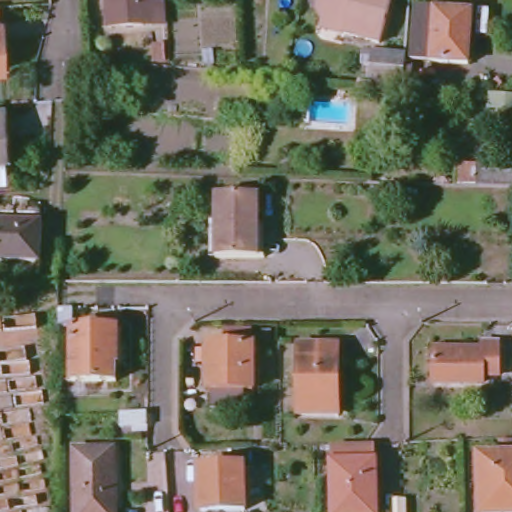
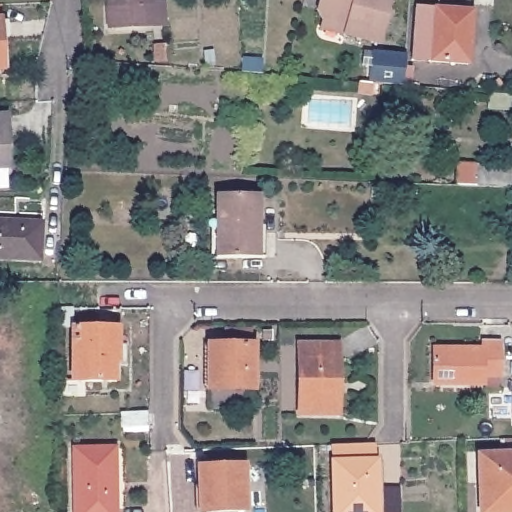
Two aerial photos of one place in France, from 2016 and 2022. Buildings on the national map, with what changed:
unchanged [(105,29),(103,0),(146,0),(147,8),(162,7),(164,27),(140,27),(105,29)]
unchanged [(317,10),(320,0),(392,0),(381,43),(345,34),(321,27),(322,20),(317,10)]
unchanged [(421,5),(477,8),(472,59),(417,56),(421,5)]
unchanged [(0,72),(0,21),(2,71),(0,72)]
unchanged [(377,49),(412,52),(411,82),(376,79),(375,89),(362,87),(363,78),(375,79),(377,49)]
unchanged [(4,170),(0,170),(0,118),(2,117),(4,170)]
unchanged [(458,187),(459,166),(477,166),(512,168),(512,190),(477,188),(458,187)]
unchanged [(217,196),(258,196),(258,259),(217,259),(217,196)]
unchanged [(0,225),(41,226),(39,262),(0,261),(0,225)]
unchanged [(72,330),(116,329),(116,346),(126,346),(126,367),(116,367),(116,383),(72,383),(72,330)]
unchanged [(434,352),(482,351),(482,344),(499,344),(499,376),(485,376),(484,383),(434,385),(434,352)]
unchanged [(209,345),(254,345),(254,390),(209,391),(209,345)]
unchanged [(298,346),(337,346),(338,415),(301,415),(298,346)]
unchanged [(123,414),(146,413),(146,428),(123,428),(123,414)]
unchanged [(331,446),(365,444),(377,444),(377,462),(377,512),(332,512),(331,463),(331,446)]
unchanged [(75,449),(115,449),(115,512),(76,512),(75,449)]
unchanged [(479,456),(512,455),(512,512),(481,512),(479,456)]
unchanged [(198,468),(245,466),(246,511),(231,512),(200,512),(198,468)]

